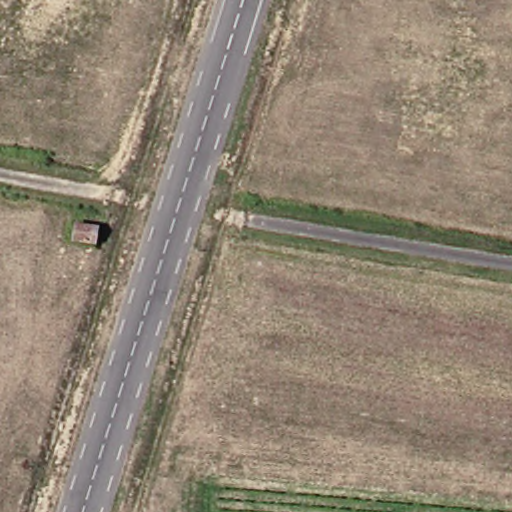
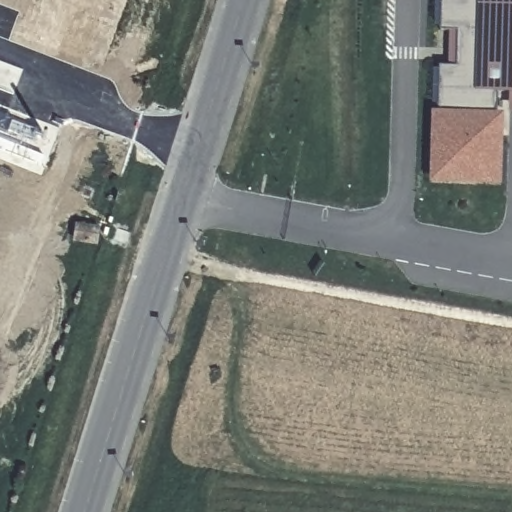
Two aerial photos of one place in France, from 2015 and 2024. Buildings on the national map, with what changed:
new [(495,113),(503,113),(501,185),(428,184),(431,110),(432,68),(438,68),(438,65),(448,65),(449,30),(439,30),(440,26),(434,26),(435,0),(512,0),(512,88),(512,91),(496,91),(495,113)]
new [(512,108),(511,108),(512,88),(512,108)]
unchanged [(80,219),(101,224),(99,240),(75,234),(80,219)]

